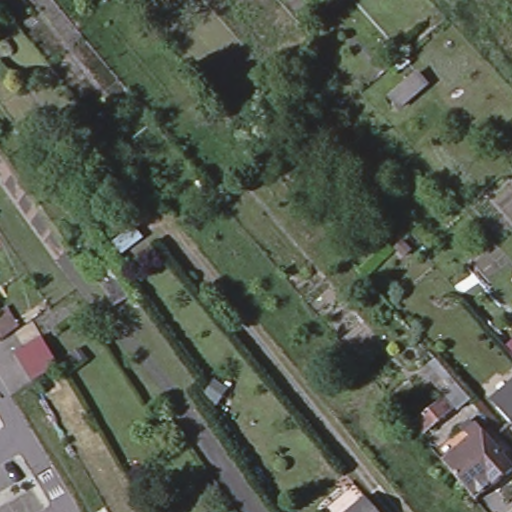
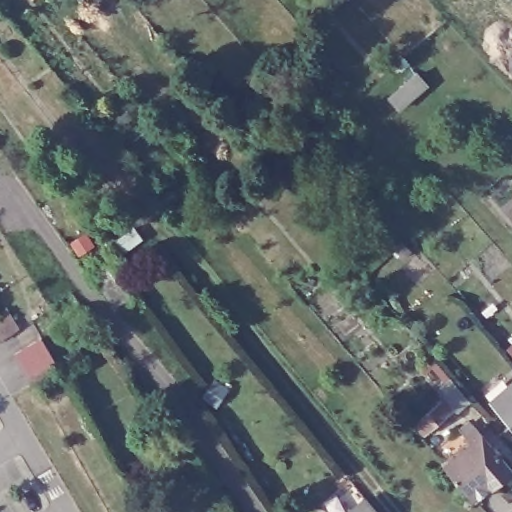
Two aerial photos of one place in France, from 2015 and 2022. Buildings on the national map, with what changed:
unchanged [(2,2),(0,0),(5,0),(2,2)]
unchanged [(112,267),(129,295),(114,304),(97,276),(112,267)]
unchanged [(32,379),(14,349),(17,347),(40,333),(57,363),(35,377),(32,379)]
unchanged [(420,372),(435,358),(472,402),(457,413),(454,410),(424,435),(414,422),(444,398),(420,372)]
unchanged [(492,401),(512,382),(512,425),(492,401)]
unchanged [(466,432),(475,425),(512,468),(512,469),(494,484),(492,483),(475,497),(465,485),(443,460),(470,437),(466,432)]
unchanged [(379,512),(359,512),(370,502),(379,512)]

